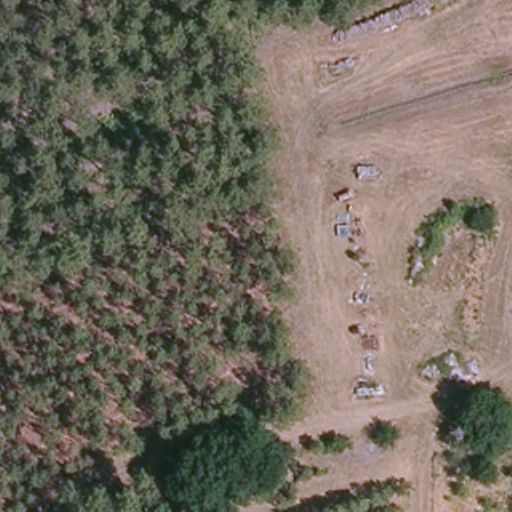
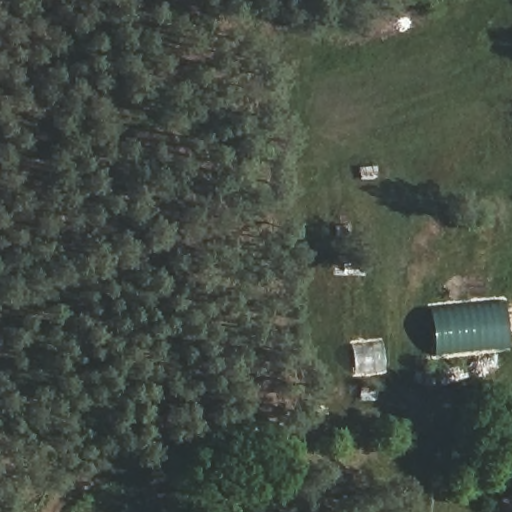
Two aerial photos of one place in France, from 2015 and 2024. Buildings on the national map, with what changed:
new [(508,301),(511,350),(436,357),(432,310),(508,301)]

